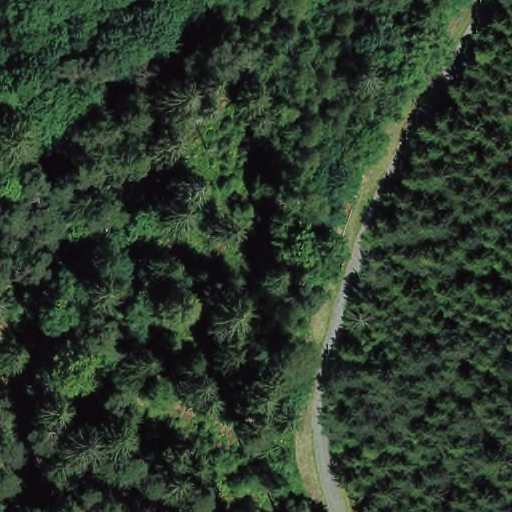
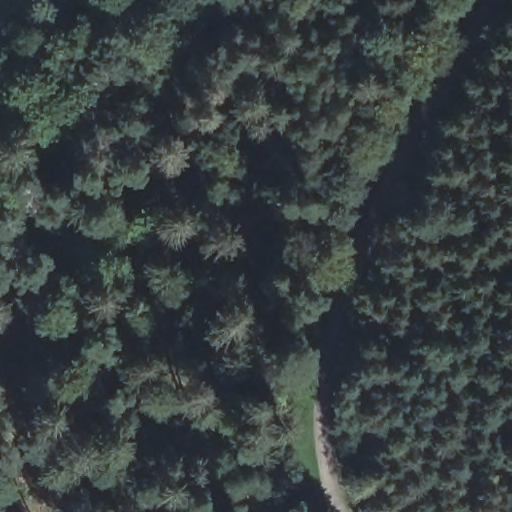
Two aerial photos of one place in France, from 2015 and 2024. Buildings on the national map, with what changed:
[]

